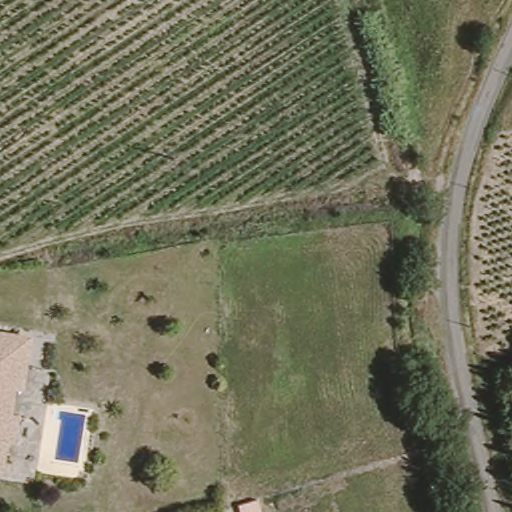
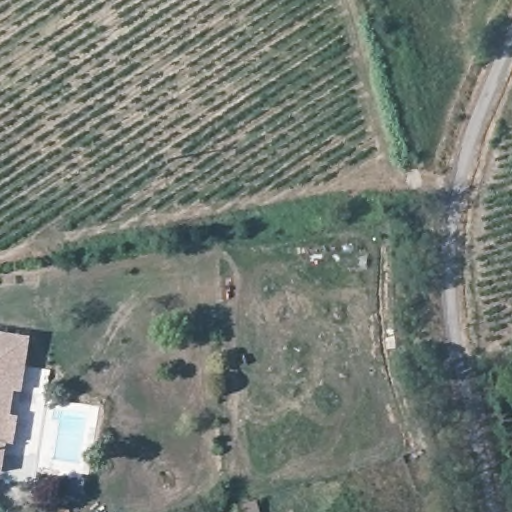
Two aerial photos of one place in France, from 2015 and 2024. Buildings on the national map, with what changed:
unchanged [(6,461),(4,470),(1,490),(0,490),(0,326),(32,330),(24,383),(12,462),(6,461)]

